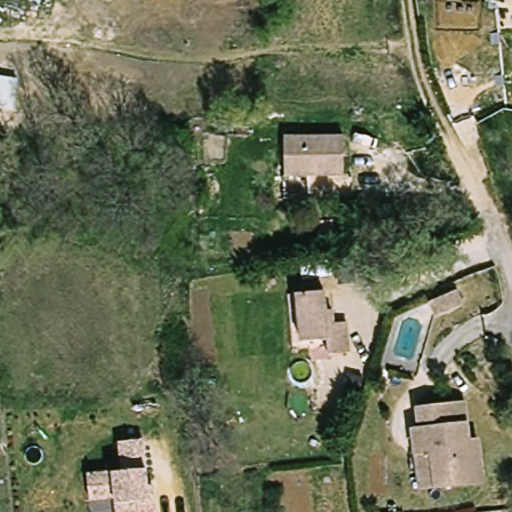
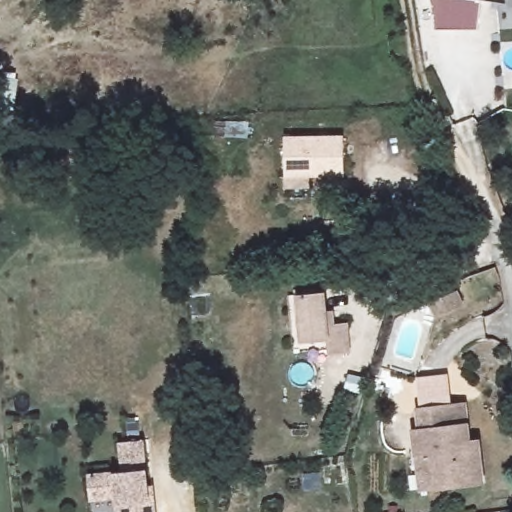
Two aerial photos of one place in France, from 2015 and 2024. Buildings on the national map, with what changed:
new [(477,24),(435,25),(434,0),(477,0),(477,24)]
unchanged [(290,175),(290,165),(292,142),(349,142),(348,166),(320,166),(320,176),(290,175)]
unchanged [(432,291),(458,277),(465,291),(440,305),(432,291)]
unchanged [(352,360),(329,358),(330,340),(302,339),(305,290),(335,292),(333,312),(342,312),(342,327),(355,328),(352,360)]
unchanged [(421,457),(417,431),(424,429),(420,409),(462,401),(470,445),(478,443),(485,478),(443,485),(426,488),(421,457)]
unchanged [(147,468),(148,484),(152,484),(155,512),(115,512),(114,504),(113,497),(90,501),(88,473),(112,472),(123,471),(117,442),(142,438),(147,468)]

